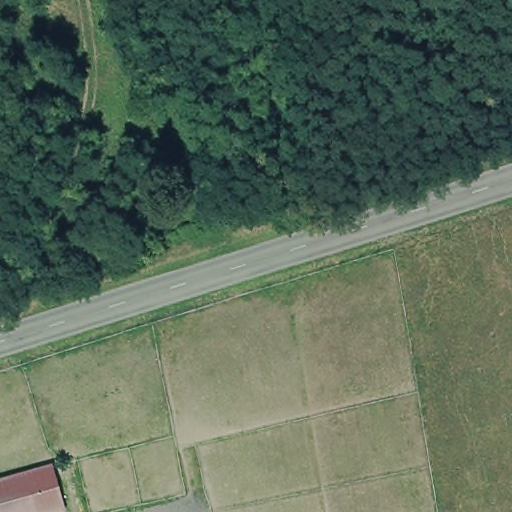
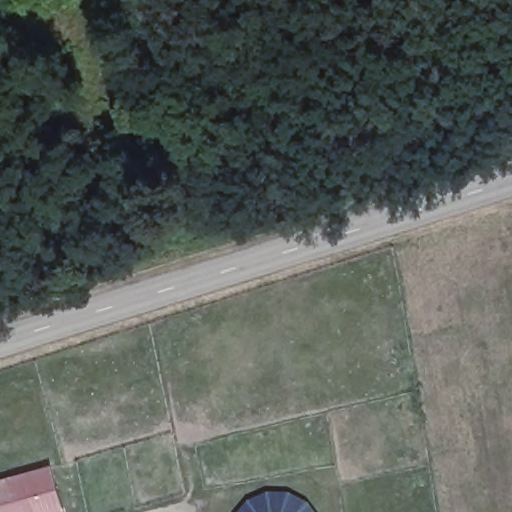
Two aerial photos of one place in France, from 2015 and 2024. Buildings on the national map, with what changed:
unchanged [(0,481),(53,466),(57,512),(0,512),(0,481)]
new [(251,500),(270,493),(291,493),(309,504),(315,512),(241,512),(251,500)]

